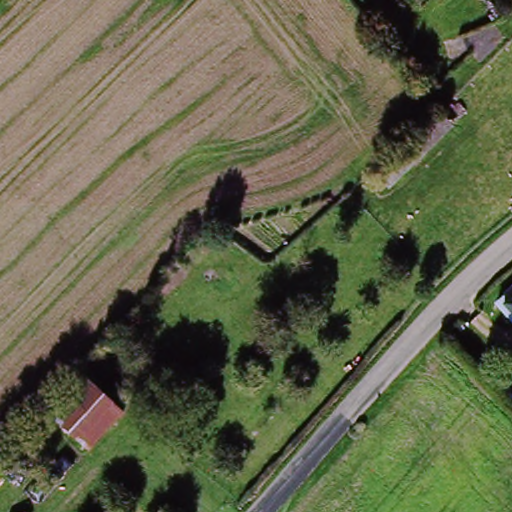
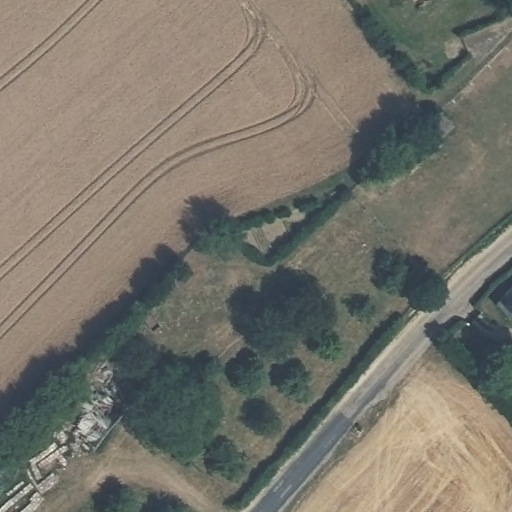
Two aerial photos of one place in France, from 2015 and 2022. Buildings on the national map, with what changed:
unchanged [(371,168),(447,99),(462,114),(388,186),(371,168)]
unchanged [(47,436),(46,436),(65,416),(55,406),(87,370),(88,370),(98,379),(134,412),(82,468),(47,436)]

